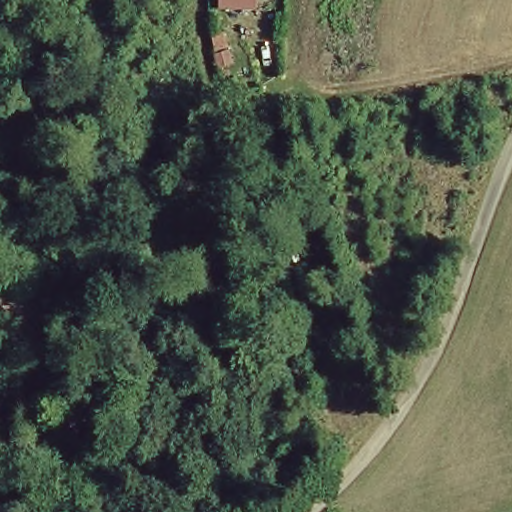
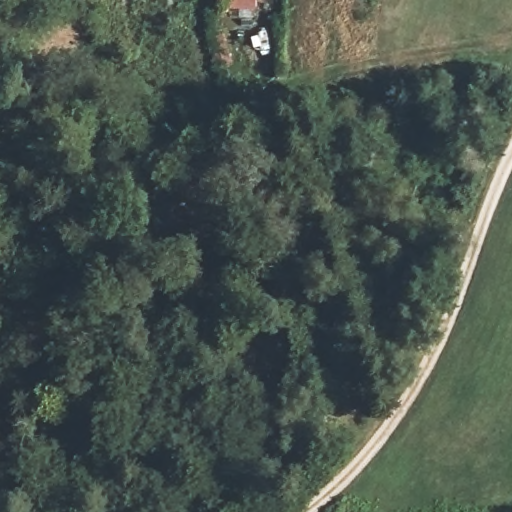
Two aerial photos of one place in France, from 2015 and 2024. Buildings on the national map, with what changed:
unchanged [(219,10),(220,0),(257,0),(256,13),(219,10)]

